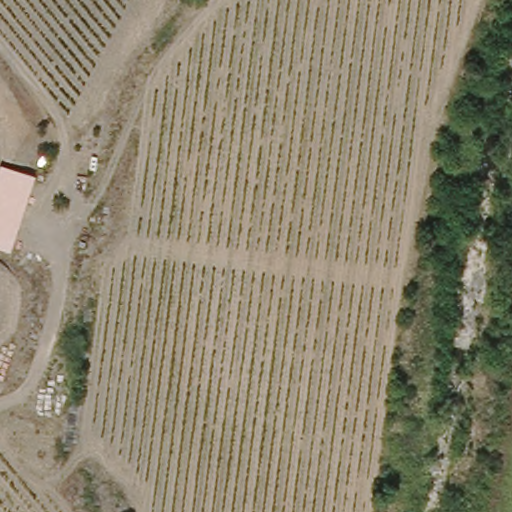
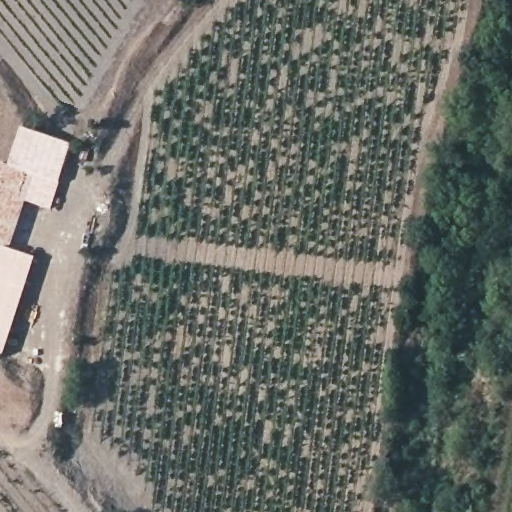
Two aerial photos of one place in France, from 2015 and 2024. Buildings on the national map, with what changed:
new [(22,129),(73,147),(62,185),(52,212),(25,202),(33,175),(9,168),(22,129)]
unchanged [(9,252),(0,249),(0,165),(33,175),(9,252)]
new [(10,250),(37,260),(4,357),(0,356),(0,258),(3,250),(9,252),(10,250)]

